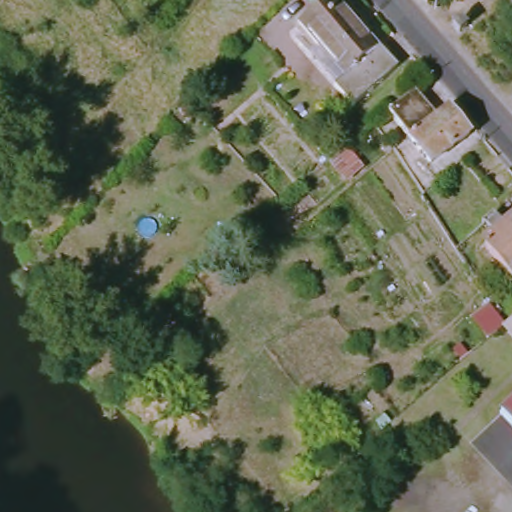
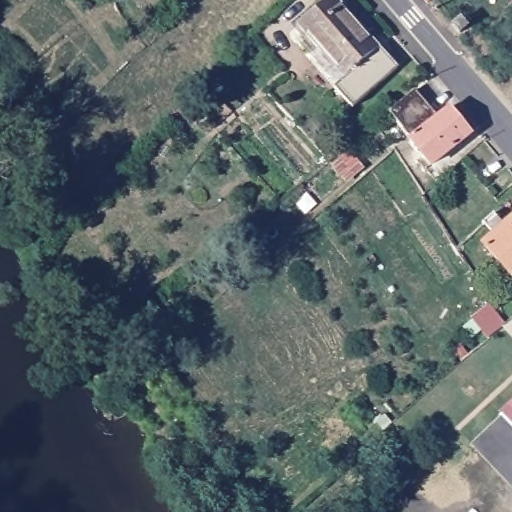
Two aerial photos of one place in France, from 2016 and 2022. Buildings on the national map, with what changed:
unchanged [(328,83),(339,72),(293,20),(316,0),(337,0),(392,62),(348,104),(328,83)]
unchanged [(430,0),(428,2),(426,0),(430,0)]
unchanged [(461,32),(455,25),(463,18),(469,26),(461,32)]
unchanged [(457,156),(437,172),(399,129),(384,107),(411,86),(434,112),(445,105),(467,131),(449,146),(457,156)]
unchanged [(486,247),(505,231),(500,226),(512,215),(512,277),(486,247)]
unchanged [(483,336),(466,316),(484,300),(501,321),(483,336)]
unchanged [(504,317),(512,311),(512,327),(504,317)]
unchanged [(499,414),(512,402),(512,428),(499,414)]

